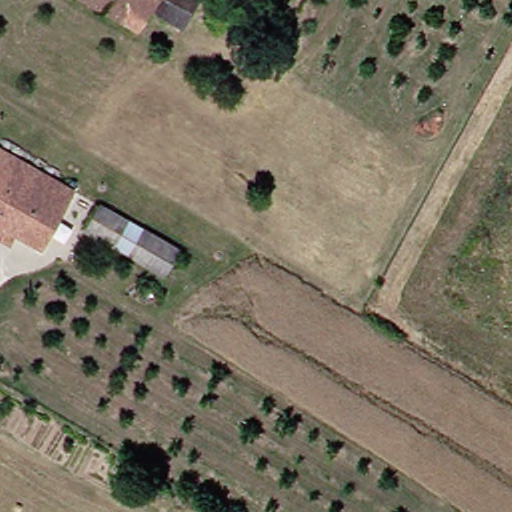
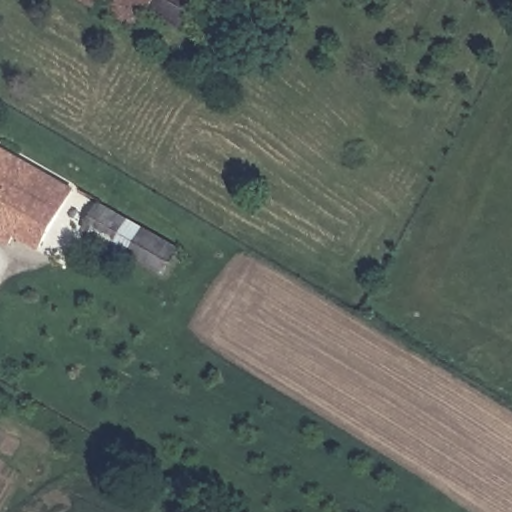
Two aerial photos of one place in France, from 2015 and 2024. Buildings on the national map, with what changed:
unchanged [(184,33),(153,16),(143,31),(83,0),(201,0),(184,33)]
unchanged [(13,234),(0,227),(0,146),(88,196),(54,257),(29,243),(23,254),(7,245),(13,234)]
unchanged [(183,248),(165,280),(87,234),(105,203),(183,248)]

